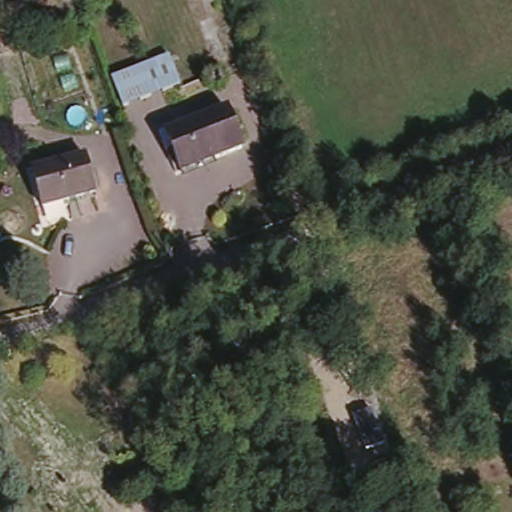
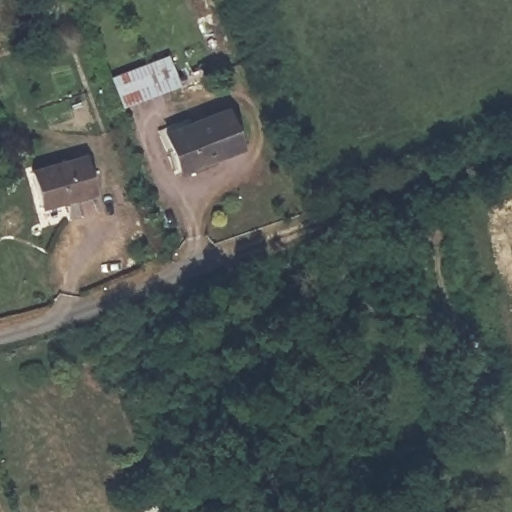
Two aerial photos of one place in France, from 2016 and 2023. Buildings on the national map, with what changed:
unchanged [(122,108),(112,79),(169,57),(180,86),(122,108)]
unchanged [(227,103),(242,146),(211,157),(195,115),(227,103)]
unchanged [(178,169),(164,127),(195,115),(211,157),(178,169)]
unchanged [(76,148),(91,187),(40,204),(28,166),(76,148)]

